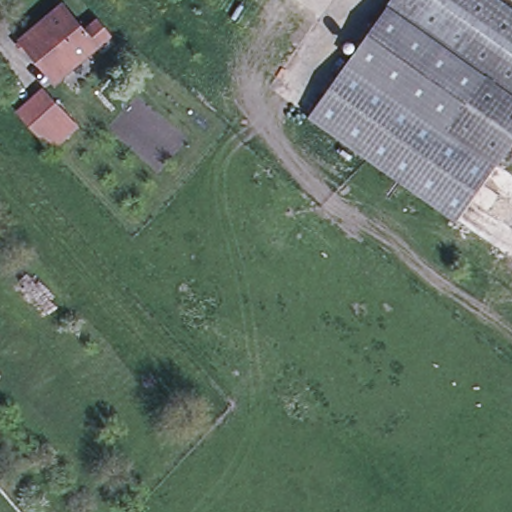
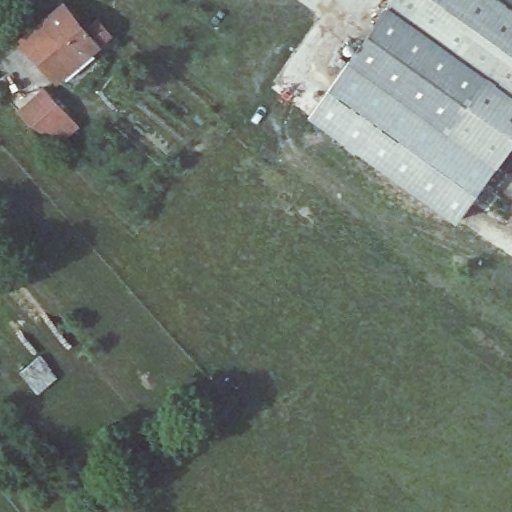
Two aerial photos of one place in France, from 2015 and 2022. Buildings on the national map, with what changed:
unchanged [(458,223),(310,119),(394,0),(463,0),(512,35),(512,146),(458,223)]
unchanged [(512,9),(512,35),(463,0),(499,0),(512,9)]
unchanged [(62,8),(85,32),(97,21),(110,35),(59,82),(22,43),(62,8)]
unchanged [(52,146),(42,136),(17,110),(42,87),(66,113),(77,125),(52,146)]

